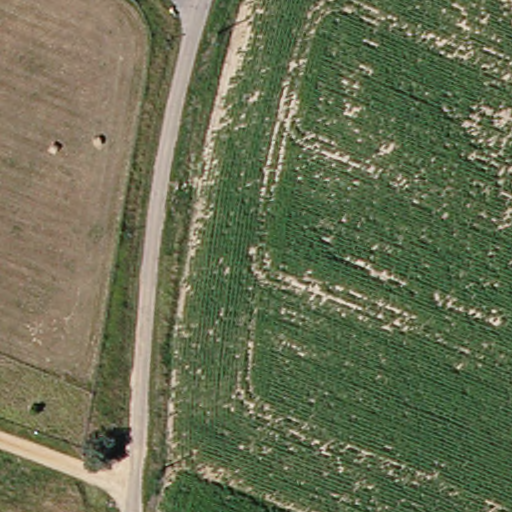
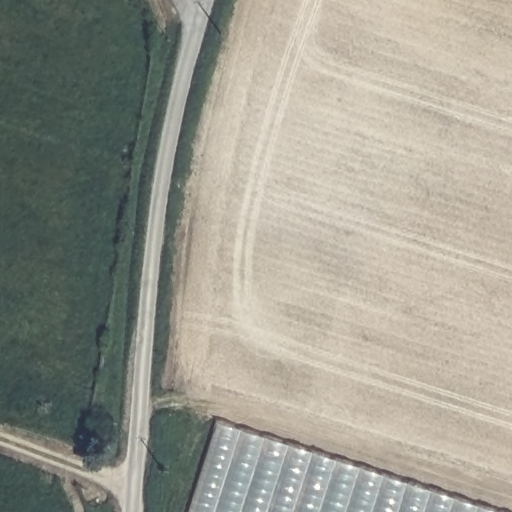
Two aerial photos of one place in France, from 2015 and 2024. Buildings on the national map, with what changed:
new [(495,512),(190,512),(219,423),(495,512)]

